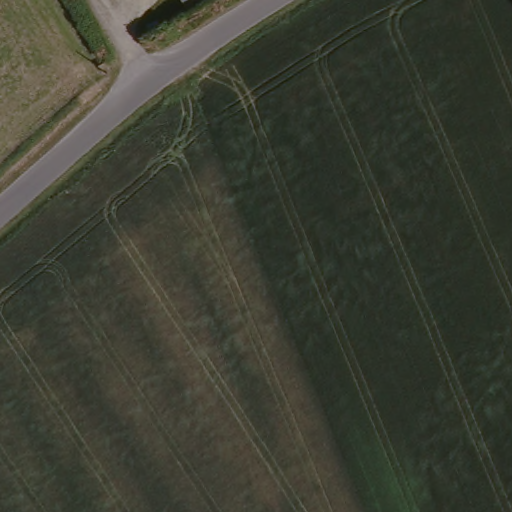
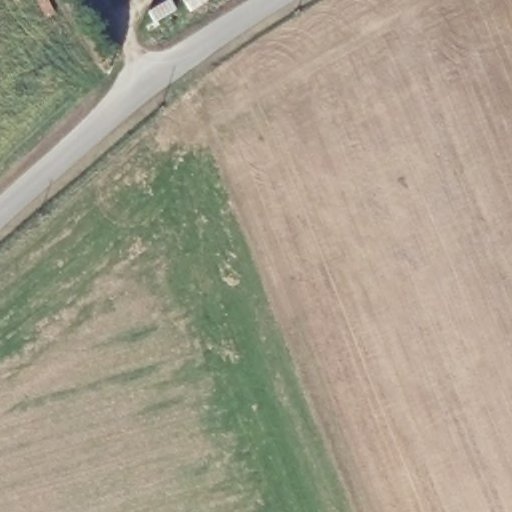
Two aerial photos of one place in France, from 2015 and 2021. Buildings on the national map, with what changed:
unchanged [(184,0),(195,0),(188,5),(184,0)]

